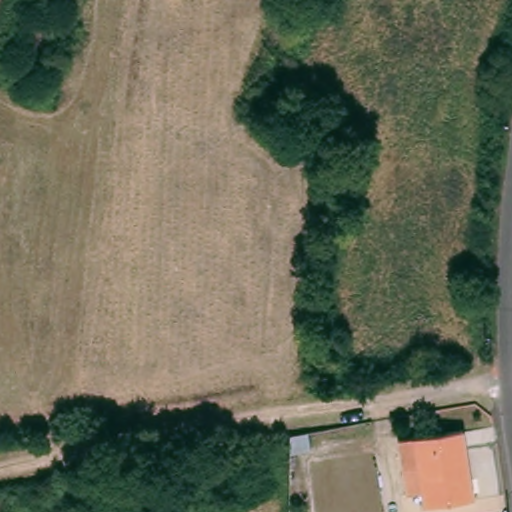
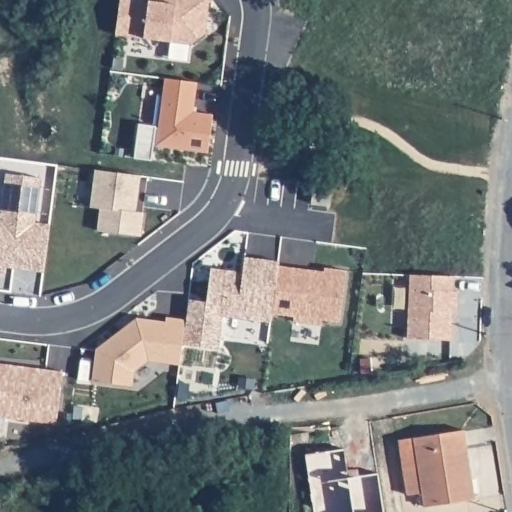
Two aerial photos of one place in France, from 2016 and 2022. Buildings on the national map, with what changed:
new [(206,31),(191,44),(116,34),(120,0),(209,0),(206,31)]
new [(197,82),(194,112),(212,114),(209,152),(156,144),(165,78),(197,82)]
new [(99,208),(90,206),(95,169),(141,174),(137,211),(144,212),(141,236),(96,229),(99,208)]
new [(41,178),(35,222),(50,224),(44,271),(0,265),(0,216),(6,173),(41,178)]
new [(313,197),(331,199),(329,210),(311,208),(313,197)]
new [(182,344),(184,324),(186,324),(190,299),(207,301),(212,267),(244,270),(245,255),(280,260),(279,265),(272,314),(271,320),(222,314),(218,348),(182,344)]
new [(0,271),(0,265),(6,266),(5,272),(0,271)]
new [(294,317),(272,314),(279,265),(324,270),(325,266),(346,269),(340,320),(322,319),(322,324),(294,320),(294,317)]
new [(454,291),(458,291),(458,311),(452,311),(452,339),(408,338),(410,274),(454,275),(454,291)]
new [(91,380),(96,348),(137,317),(166,320),(166,316),(185,318),(184,324),(182,344),(180,363),(149,360),(135,370),(133,386),(91,380)]
new [(55,423),(0,416),(0,362),(63,371),(55,423)]
unchanged [(309,430),(311,448),(290,451),(291,434),(309,430)]
unchanged [(464,430),(476,499),(423,506),(422,492),(407,494),(398,440),(464,430)]

